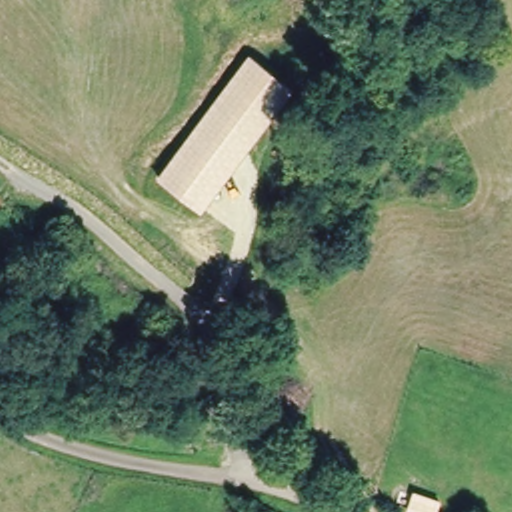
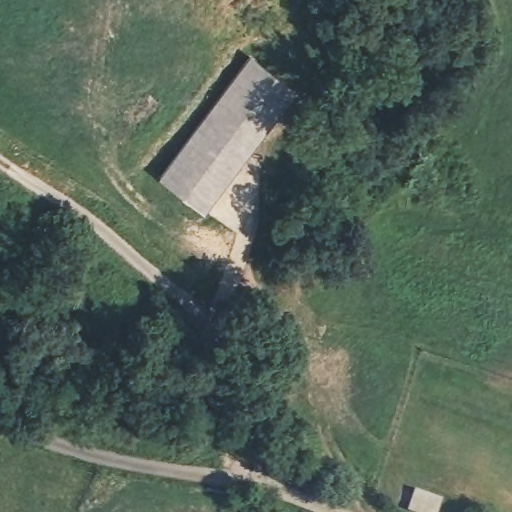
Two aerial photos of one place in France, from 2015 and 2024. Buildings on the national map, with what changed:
unchanged [(296,88),(202,212),(156,178),(249,55),(296,88)]
unchanged [(268,436),(280,450),(267,463),(254,448),(268,436)]

